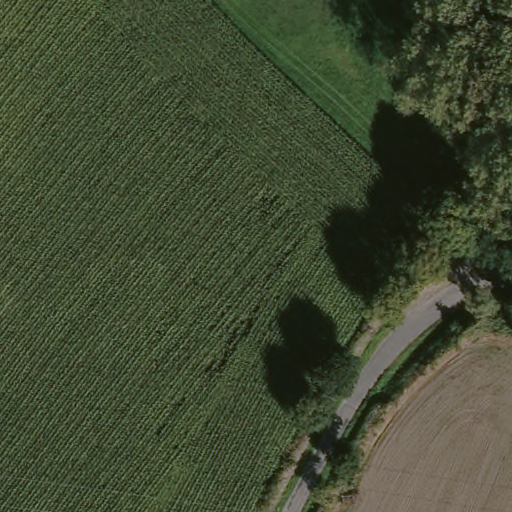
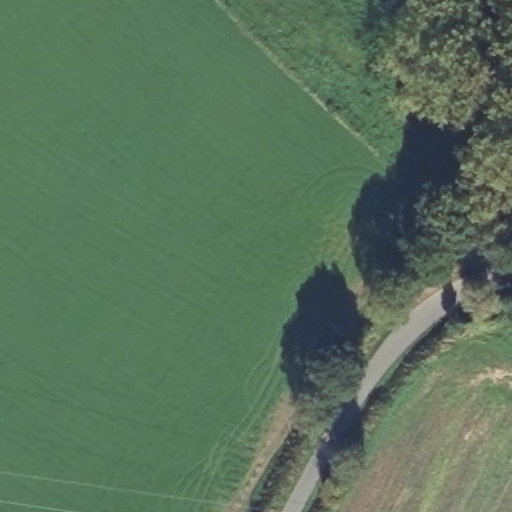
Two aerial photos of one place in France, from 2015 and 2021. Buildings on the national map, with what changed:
[]

